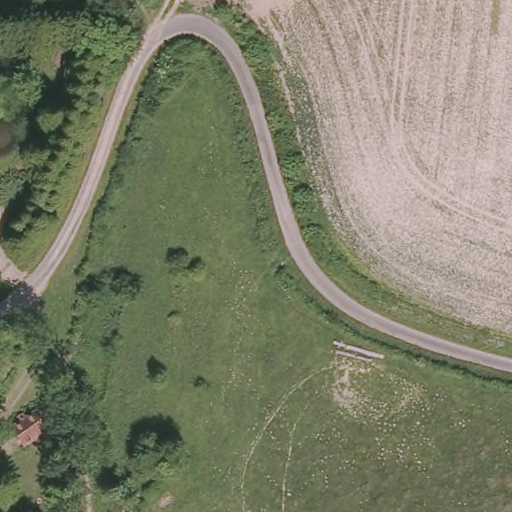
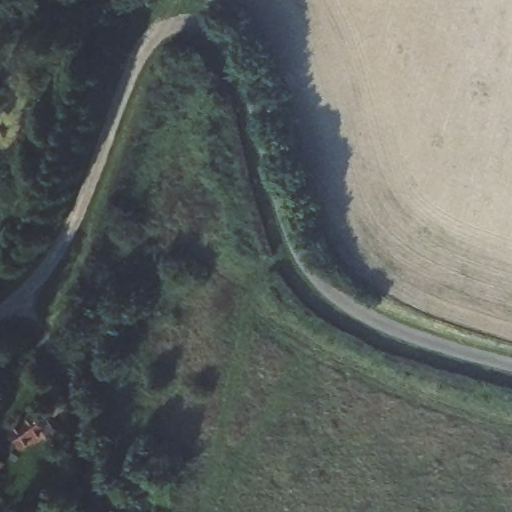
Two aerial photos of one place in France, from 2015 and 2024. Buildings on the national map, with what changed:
unchanged [(34,409),(52,433),(27,450),(9,426),(34,409)]

